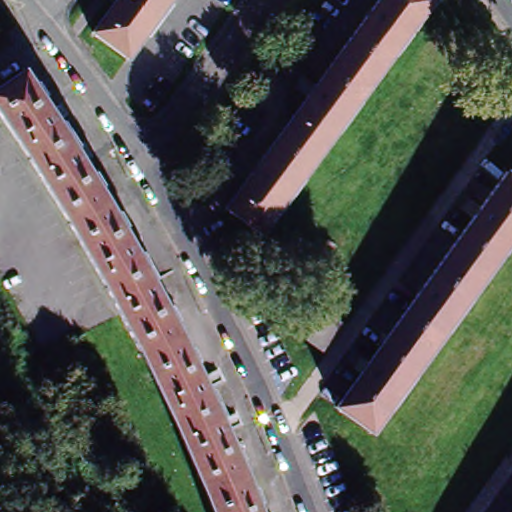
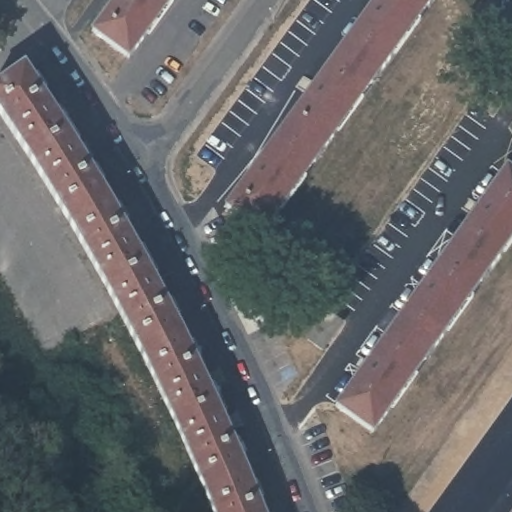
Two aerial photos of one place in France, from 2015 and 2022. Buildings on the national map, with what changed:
unchanged [(94,33),(118,0),(171,0),(130,58),(94,33)]
unchanged [(229,206),(379,0),(432,0),(263,231),(229,206)]
unchanged [(34,162),(0,113),(0,94),(29,75),(69,138),(34,162)]
unchanged [(71,225),(34,162),(69,138),(108,202),(71,225)]
unchanged [(507,170),(512,174),(512,240),(374,431),(341,406),(507,170)]
unchanged [(110,289),(71,225),(108,202),(147,268),(110,289)]
unchanged [(145,355),(125,317),(110,289),(147,268),(183,336),(145,355)]
unchanged [(299,344),(318,317),(333,328),(314,354),(299,344)]
unchanged [(181,423),(155,374),(145,355),(183,336),(218,404),(181,423)]
unchanged [(209,492),(181,423),(218,404),(248,475),(209,492)]
unchanged [(217,512),(209,492),(248,475),(262,512),(217,512)]

